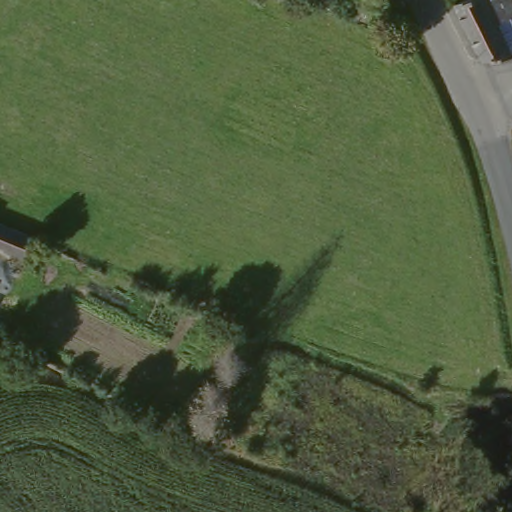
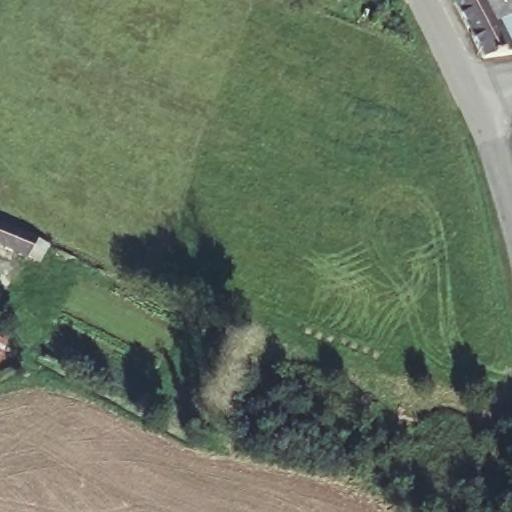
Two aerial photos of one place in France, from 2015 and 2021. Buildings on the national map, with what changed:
unchanged [(486,61),(454,2),(461,0),(512,0),(512,58),(486,61)]
unchanged [(16,261),(0,254),(0,223),(27,233),(16,261)]

